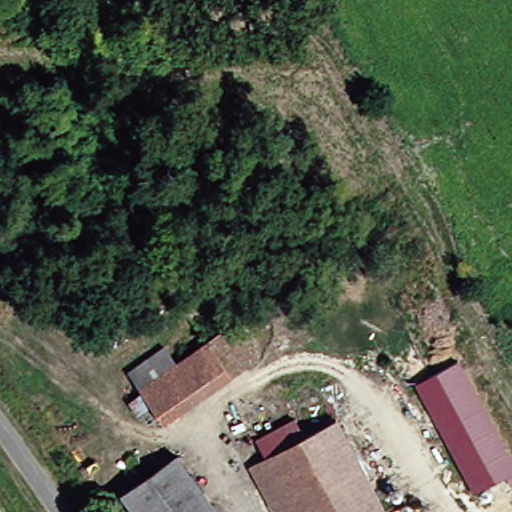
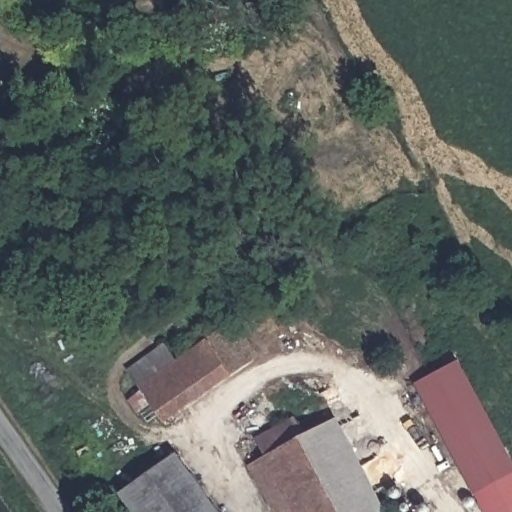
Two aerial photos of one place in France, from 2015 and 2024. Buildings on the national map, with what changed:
unchanged [(232,379),(225,367),(211,344),(237,327),(258,363),(250,369),(232,379)]
unchanged [(232,379),(162,423),(138,388),(126,369),(137,364),(164,347),(175,364),(211,344),(225,367),(232,379)]
unchanged [(457,361),(512,464),(512,473),(474,493),(416,382),(457,361)]
unchanged [(269,456),(261,438),(295,421),(304,438),(355,412),(366,434),(348,443),(382,502),(395,494),(404,512),(271,512),(247,468),(269,456)]
unchanged [(133,490),(187,455),(220,512),(146,512),(133,490)]
new [(477,495),(512,476),(512,512),(486,512),(477,495)]

